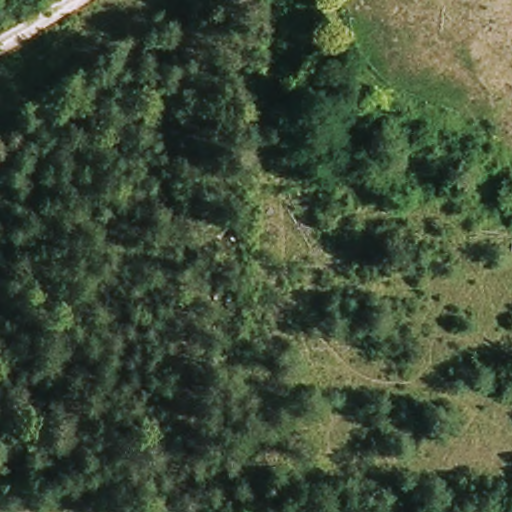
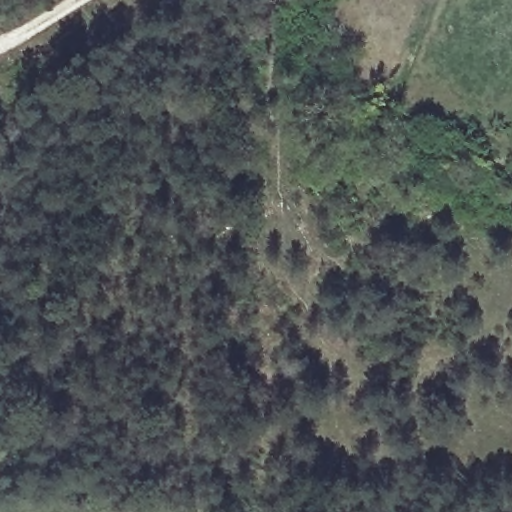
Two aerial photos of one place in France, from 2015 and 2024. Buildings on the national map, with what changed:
[]

